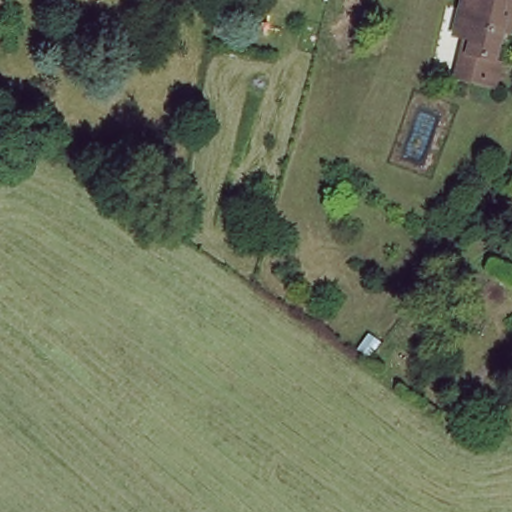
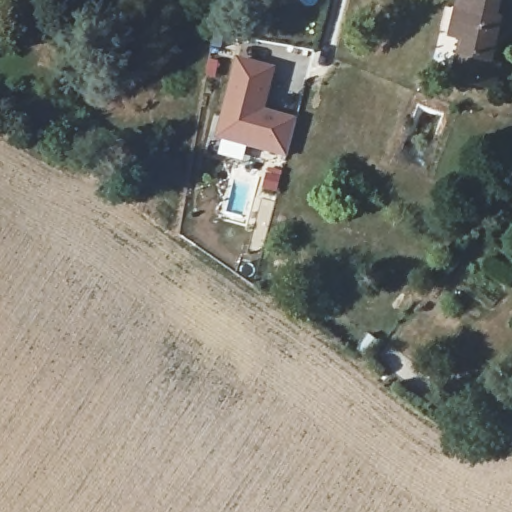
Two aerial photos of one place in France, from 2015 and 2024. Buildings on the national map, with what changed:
unchanged [(481,85),(453,76),(462,46),(467,48),(471,36),(455,30),(463,0),(512,0),(512,21),(512,23),(503,20),(493,57),(501,60),(492,89),(481,85)]
new [(296,118),(287,158),(215,140),(236,58),(276,68),(266,111),(296,118)]

